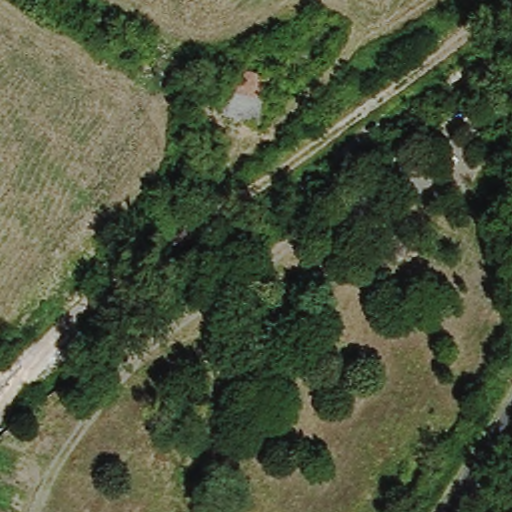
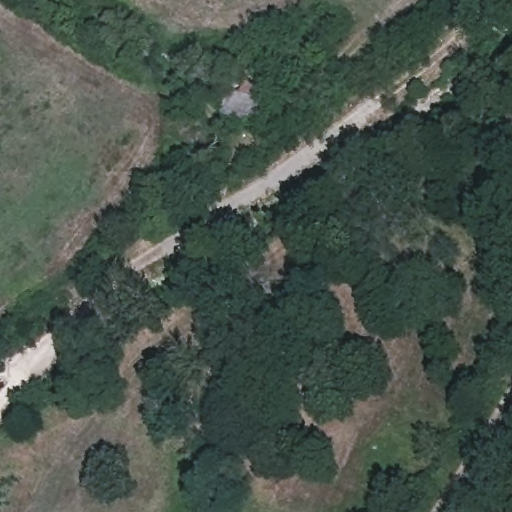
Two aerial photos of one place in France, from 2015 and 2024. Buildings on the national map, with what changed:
unchanged [(226,64),(271,75),(255,128),(211,115),(215,103),(226,64)]

